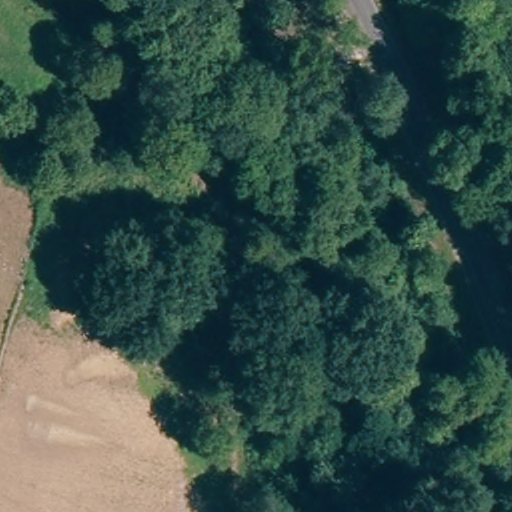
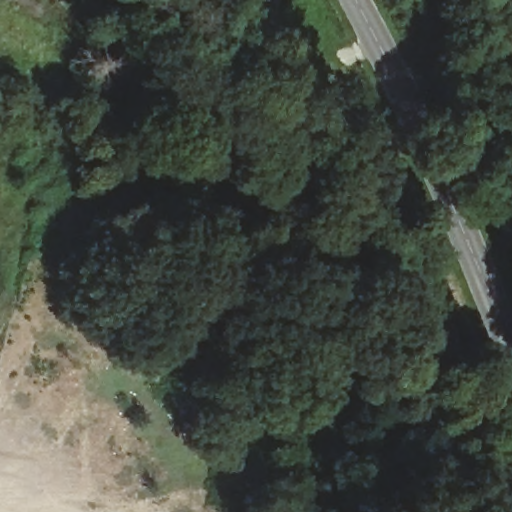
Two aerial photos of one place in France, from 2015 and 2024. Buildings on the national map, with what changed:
unchanged [(311,110),(328,102),(348,143),(330,151),(311,110)]

